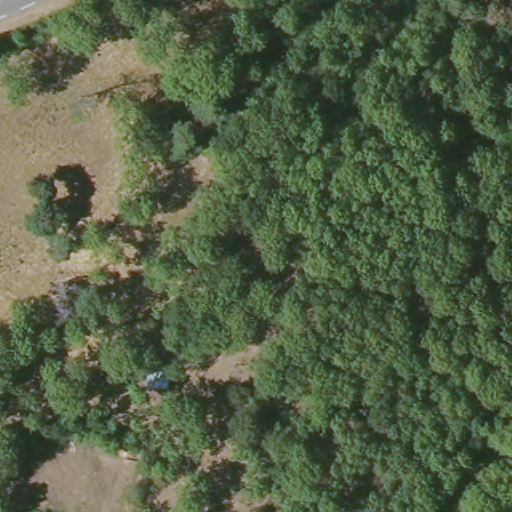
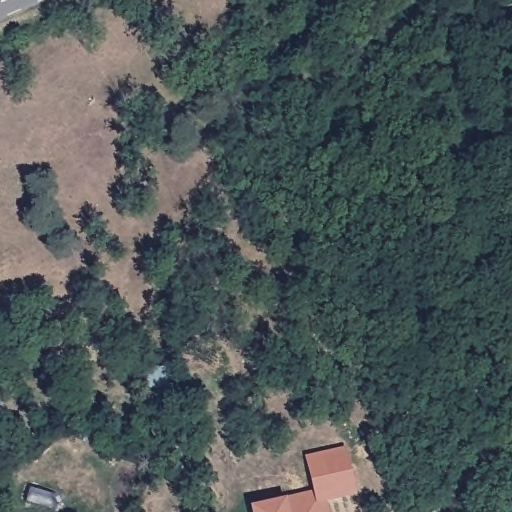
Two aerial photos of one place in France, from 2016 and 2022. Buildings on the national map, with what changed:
new [(283,498),(311,493),(304,456),(343,448),(354,495),(323,501),(326,512),(251,512),(250,506),(283,498)]

